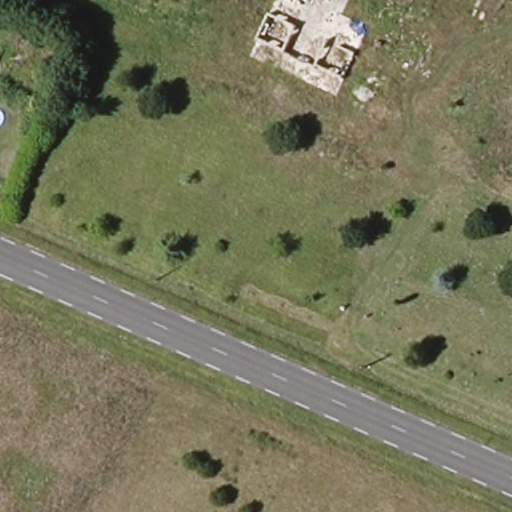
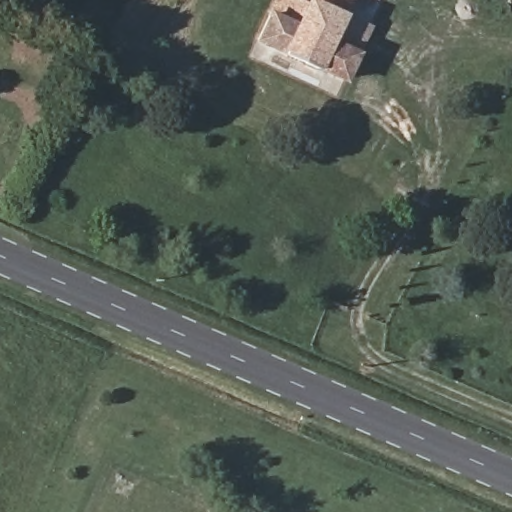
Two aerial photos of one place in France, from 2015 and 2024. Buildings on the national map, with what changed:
new [(259,28),(267,11),(297,24),(309,1),(310,0),(349,0),(343,12),(314,70),(257,39),(262,30),(259,28)]
new [(314,70),(343,12),(373,25),(359,51),(345,83),(314,70)]

